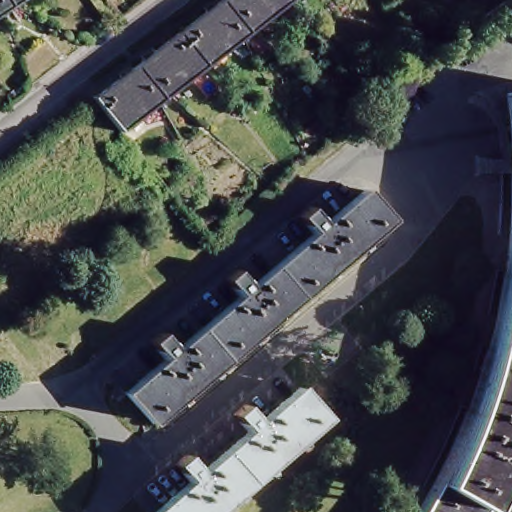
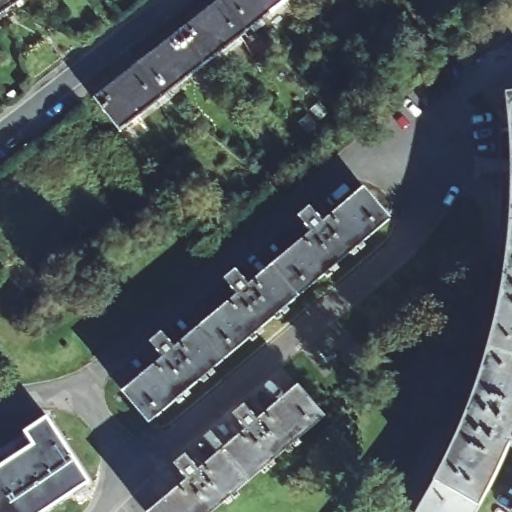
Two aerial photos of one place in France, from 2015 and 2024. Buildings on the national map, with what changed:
unchanged [(0,0),(4,0),(0,3),(0,0)]
unchanged [(215,0),(282,0),(251,24),(241,31),(205,60),(169,88),(158,96),(119,126),(94,94),(215,0)]
unchanged [(452,460),(472,417),(479,397),(491,367),(497,347),(502,323),(505,302),(506,283),(508,233),(510,86),(512,86),(512,449),(508,448),(499,470),(485,499),(479,509),(440,486),(445,476),(452,460)]
unchanged [(385,214),(146,419),(120,388),(159,356),(143,337),(156,327),(172,345),(308,228),(294,210),(305,200),(320,217),(360,183),(385,214)]
unchanged [(324,412),(207,512),(145,512),(179,483),(165,467),(177,456),(191,473),(246,425),(232,409),(245,398),(259,415),(297,382),(324,412)]
new [(0,468),(34,447),(23,432),(46,418),(88,483),(45,512),(0,512),(0,468)]
new [(32,445),(0,466),(0,449),(24,434),(32,445)]
unchanged [(440,486),(479,509),(477,512),(423,512),(440,486)]

